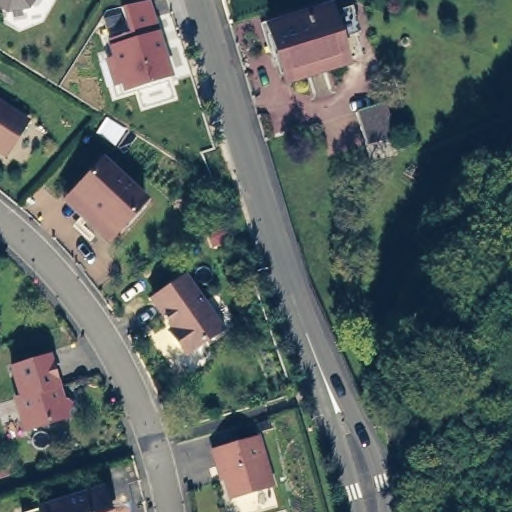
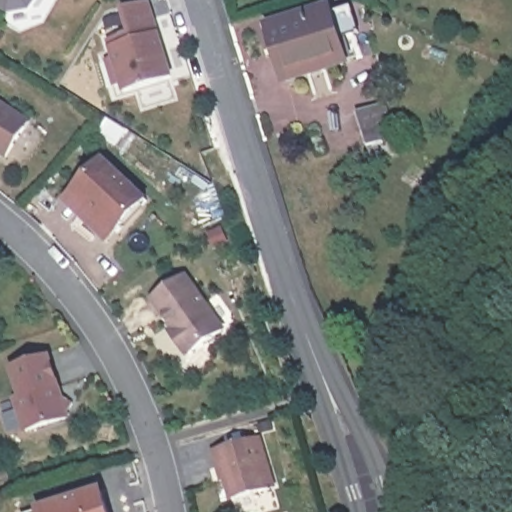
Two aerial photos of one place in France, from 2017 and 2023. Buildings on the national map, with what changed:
unchanged [(8,15),(0,9),(0,0),(36,0),(29,12),(8,15)]
unchanged [(122,95),(119,86),(111,88),(102,60),(110,57),(105,40),(128,34),(121,9),(150,0),(173,77),(122,95)]
unchanged [(330,3),(349,58),(287,78),(269,24),(330,3)]
unchanged [(26,122),(3,157),(0,155),(0,105),(26,122)]
unchanged [(392,109),(403,143),(374,151),(364,118),(392,109)]
unchanged [(66,193),(75,185),(105,152),(149,192),(120,223),(110,234),(66,193)]
unchanged [(176,326),(155,296),(188,273),(225,326),(189,351),(177,334),(172,328),(176,326)]
unchanged [(18,396),(23,394),(14,364),(50,352),(60,384),(58,384),(60,392),(74,400),(69,411),(69,414),(28,426),(18,396)]
unchanged [(221,466),(216,447),(260,435),(274,483),(233,495),(225,465),(221,466)]
unchanged [(102,491),(109,512),(40,512),(40,510),(102,491)]
unchanged [(40,512),(32,512),(40,510),(40,512)]

